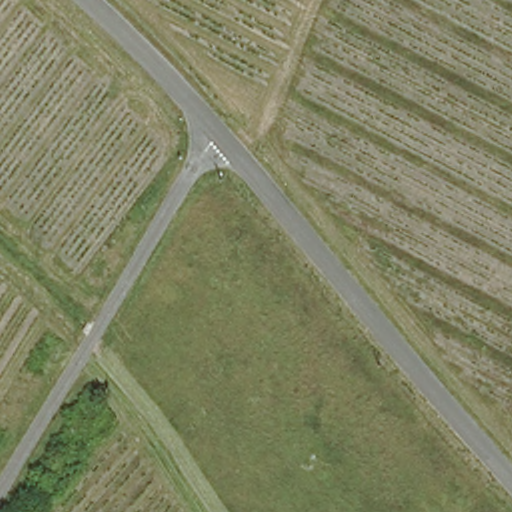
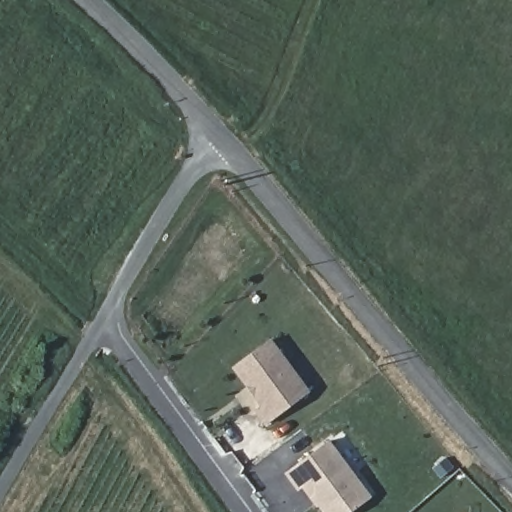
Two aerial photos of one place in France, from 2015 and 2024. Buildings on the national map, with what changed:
new [(234,366),(273,338),(312,391),(268,423),(258,410),(263,406),(234,366)]
new [(331,440),(373,498),(352,512),(327,512),(308,484),(302,488),(289,470),(331,440)]

